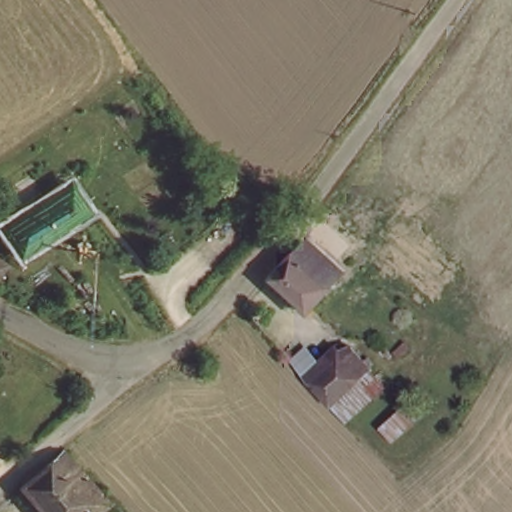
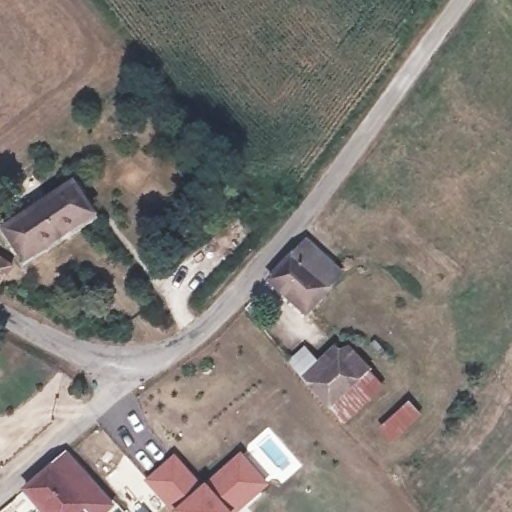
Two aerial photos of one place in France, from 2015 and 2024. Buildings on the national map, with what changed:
unchanged [(7,227),(70,180),(93,214),(29,261),(7,227)]
unchanged [(288,292),(272,277),(288,257),(303,241),(321,257),(341,276),(325,292),(308,310),(288,292)]
unchanged [(0,273),(0,264),(4,266),(0,273)]
unchanged [(350,350),(382,380),(363,397),(334,363),(350,350)]
unchanged [(363,397),(337,421),(297,367),(310,358),(323,373),(334,363),(363,397)]
unchanged [(116,507),(111,512),(38,512),(23,492),(69,451),(116,507)]
new [(240,451),(270,484),(244,508),(240,512),(171,512),(203,483),(240,451)]
new [(203,483),(171,512),(169,512),(143,480),(174,453),(203,483)]

